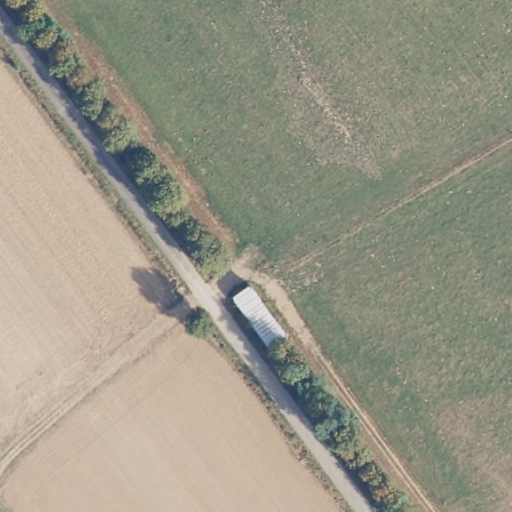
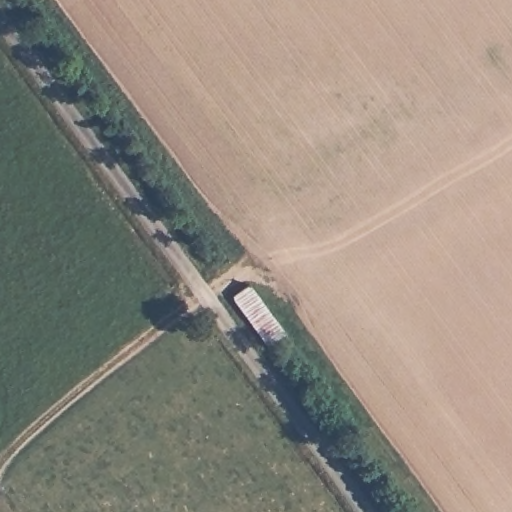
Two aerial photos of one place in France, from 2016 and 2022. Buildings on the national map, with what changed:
unchanged [(290,330),(269,346),(232,295),(253,278),(290,330)]

